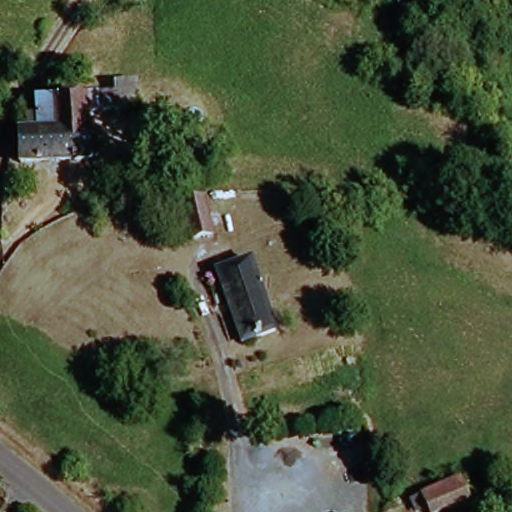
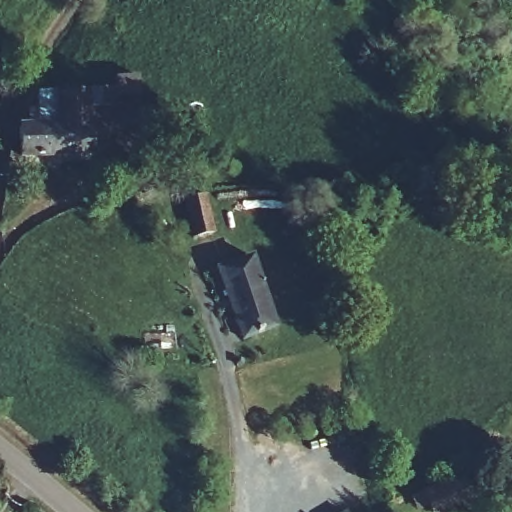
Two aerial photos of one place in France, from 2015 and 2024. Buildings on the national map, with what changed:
unchanged [(123,92),(124,86),(143,89),(147,95),(142,115),(94,108),(97,149),(61,150),(59,90),(90,87),(123,92)]
unchanged [(40,123),(40,91),(59,90),(61,150),(27,152),(27,123),(40,123)]
unchanged [(202,200),(210,236),(189,241),(180,205),(202,200)]
unchanged [(255,333),(245,337),(220,267),(252,256),(277,326),(255,333)]
unchanged [(472,483),(468,474),(485,467),(490,476),(472,483)]
unchanged [(470,498),(434,512),(421,512),(415,498),(427,493),(462,478),(470,498)]
unchanged [(350,512),(341,512),(347,508),(350,512)]

